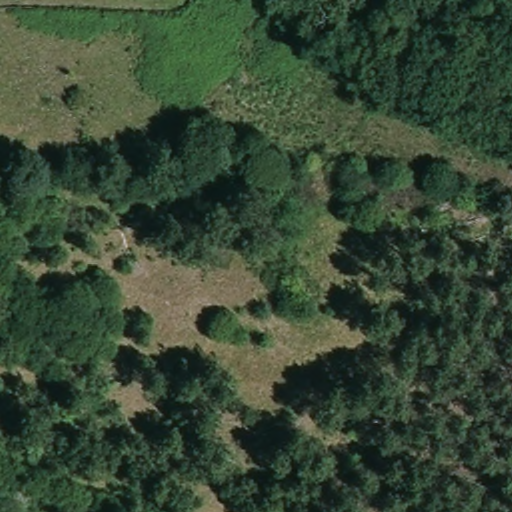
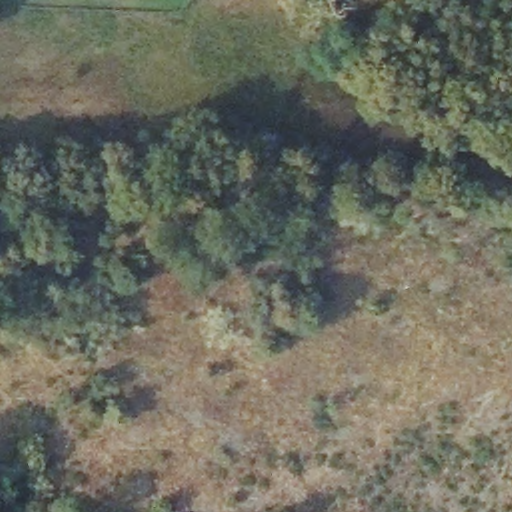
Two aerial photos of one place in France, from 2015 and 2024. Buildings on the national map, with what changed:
[]

